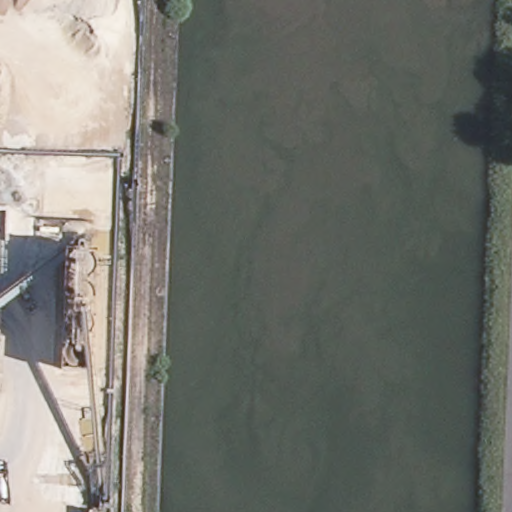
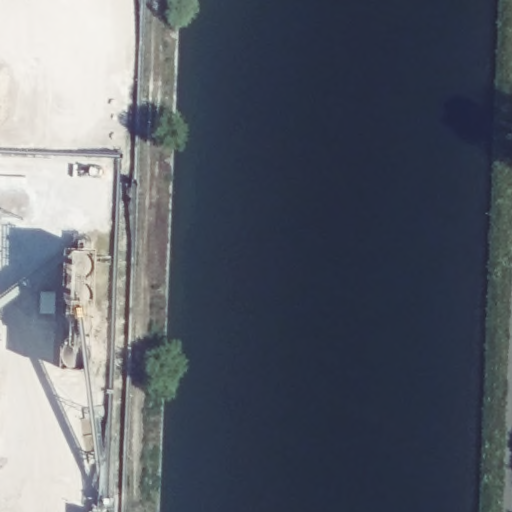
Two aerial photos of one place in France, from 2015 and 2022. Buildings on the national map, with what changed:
unchanged [(95,260),(88,382),(51,379),(54,257),(95,260)]

